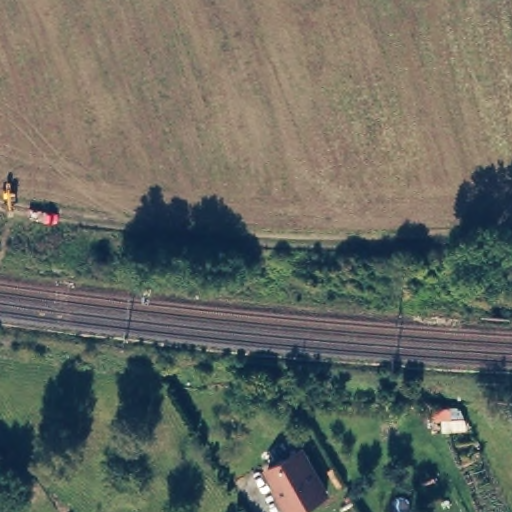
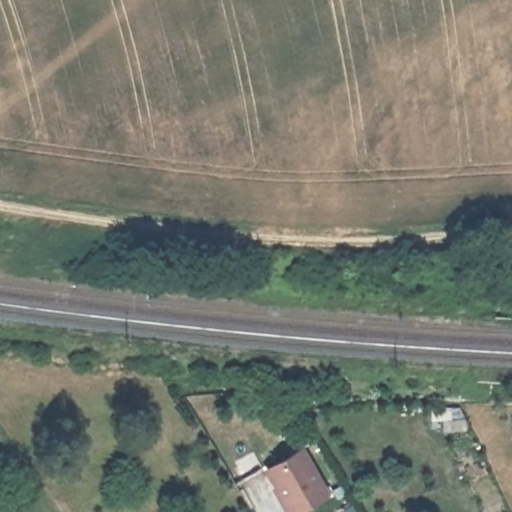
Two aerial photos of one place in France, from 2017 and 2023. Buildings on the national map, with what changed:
unchanged [(285,512),(260,469),(302,444),(330,495),(301,512),(285,512)]

